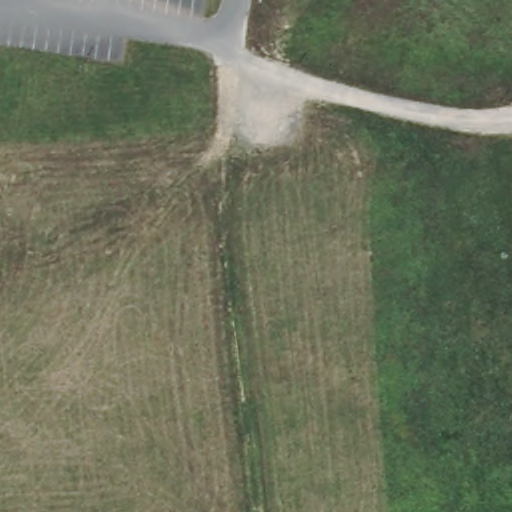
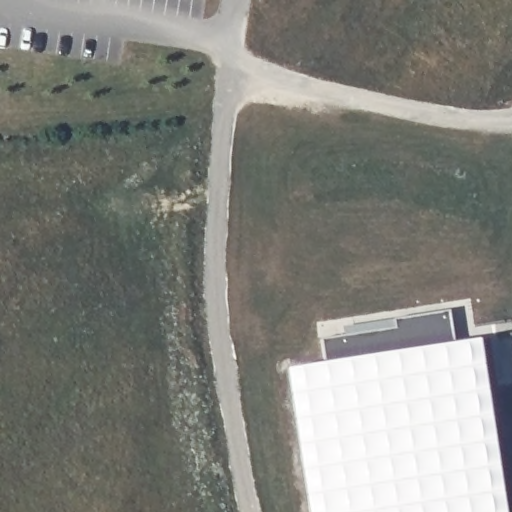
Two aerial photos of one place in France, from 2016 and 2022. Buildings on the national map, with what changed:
new [(395,327),(393,320),(449,311),(455,345),(325,365),(321,339),(395,327)]
new [(325,365),(455,345),(478,341),(504,512),(309,512),(287,370),(325,365)]

